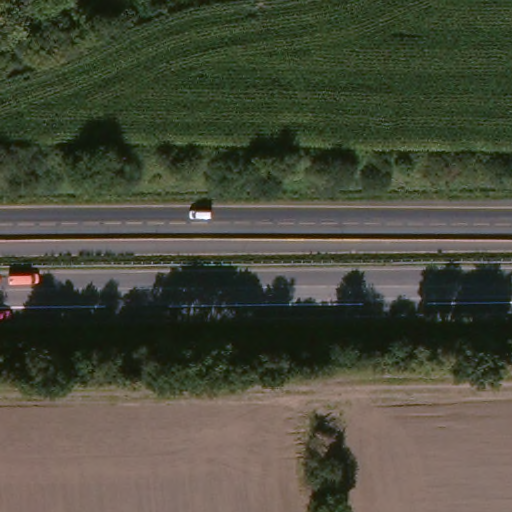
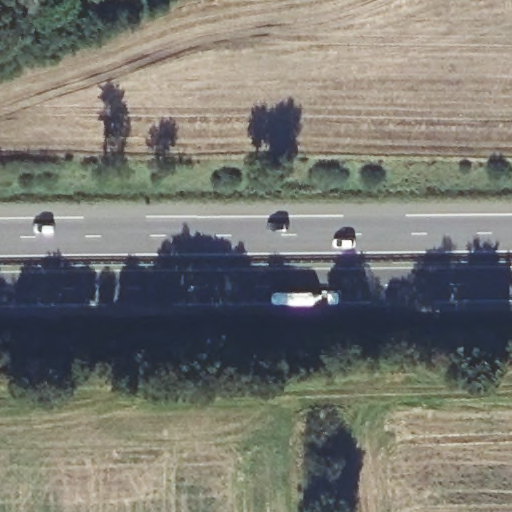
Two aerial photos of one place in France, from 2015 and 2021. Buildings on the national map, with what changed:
[]

